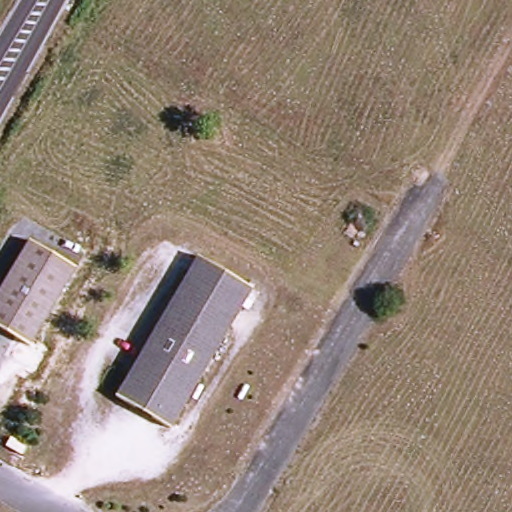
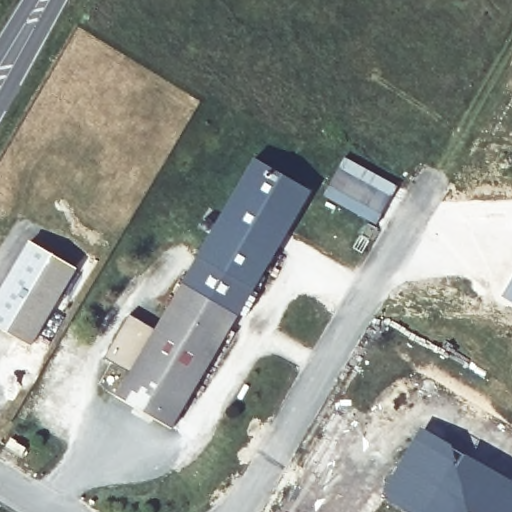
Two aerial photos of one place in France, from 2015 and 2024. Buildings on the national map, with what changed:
new [(323,195),(344,157),(395,185),(375,223),(323,195)]
new [(252,288),(198,256),(254,160),(311,191),(252,288)]
unchanged [(33,242),(79,269),(33,347),(0,328),(0,299),(33,242)]
unchanged [(198,256),(256,291),(173,429),(115,394),(198,256)]
new [(512,303),(501,296),(512,278),(512,303)]
new [(418,428),(459,450),(454,459),(512,494),(512,512),(407,512),(379,497),(418,428)]
unchanged [(30,440),(24,449),(13,442),(18,433),(30,440)]

